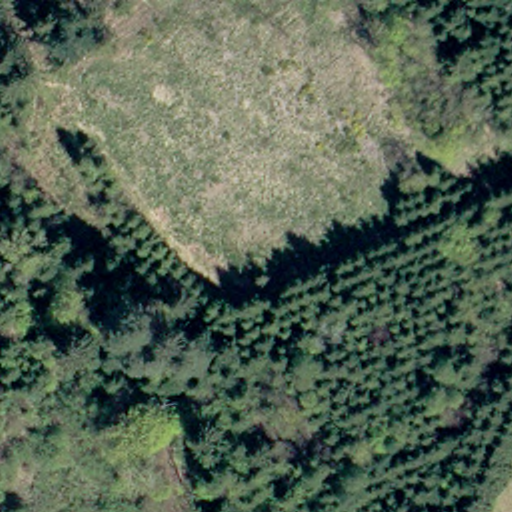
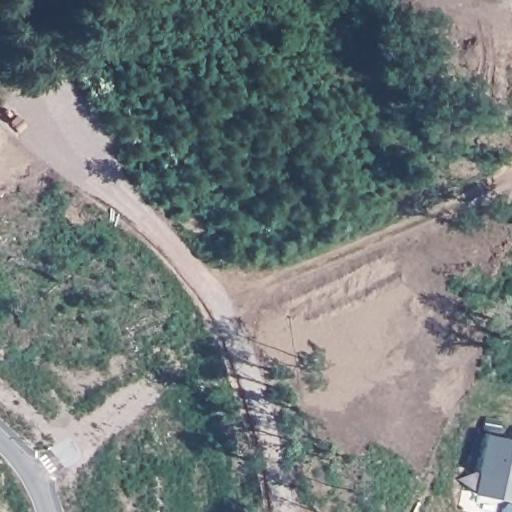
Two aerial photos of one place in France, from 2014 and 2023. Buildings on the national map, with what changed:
new [(512,441),(512,500),(475,492),(487,435),(512,441)]

